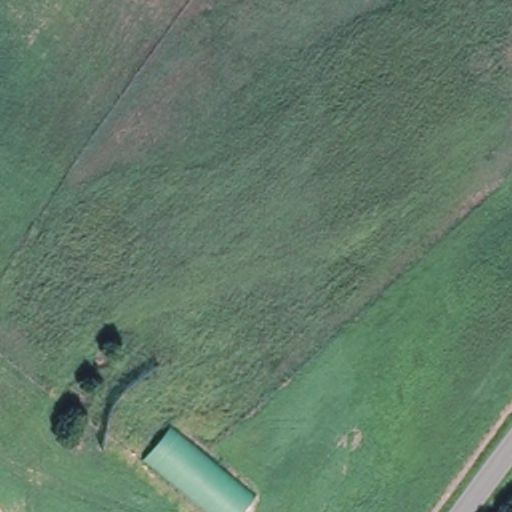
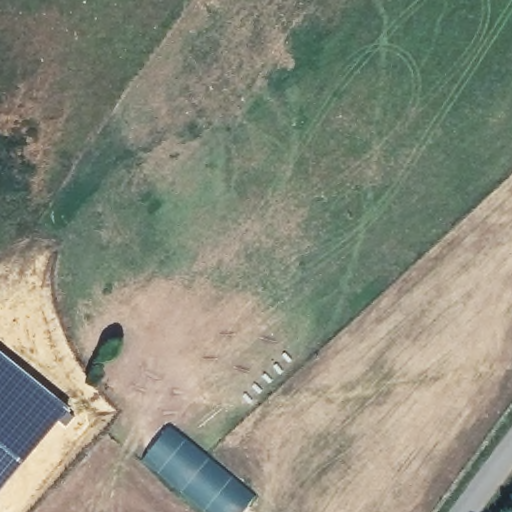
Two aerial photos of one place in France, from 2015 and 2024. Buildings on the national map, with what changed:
new [(75,414),(64,426),(59,422),(0,490),(0,348),(51,390),(75,414)]
unchanged [(171,427),(254,499),(243,512),(211,512),(145,458),(171,427)]

